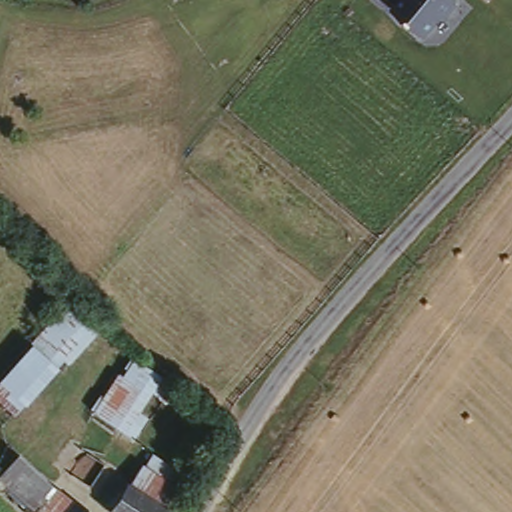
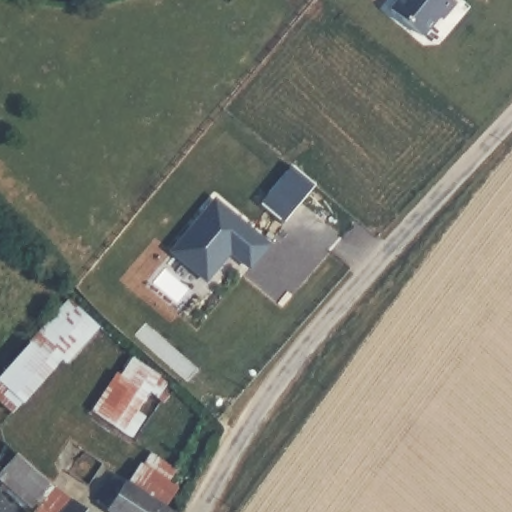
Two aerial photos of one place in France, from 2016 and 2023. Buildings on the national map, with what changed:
unchanged [(399,0),(454,0),(457,2),(426,39),(391,9),(399,0)]
new [(292,165),(312,182),(283,220),(263,200),(292,165)]
new [(271,246),(252,270),(232,255),(208,283),(172,251),(215,198),(271,246)]
unchanged [(9,417),(0,409),(0,381),(29,349),(27,347),(67,305),(91,327),(9,417)]
unchanged [(127,432),(120,428),(86,401),(114,367),(117,370),(131,353),(159,376),(129,416),(136,422),(127,432)]
unchanged [(141,458),(145,460),(151,449),(178,465),(171,477),(180,483),(167,501),(129,477),(141,458)]
unchanged [(56,485),(71,497),(57,512),(31,512),(22,505),(24,501),(0,479),(0,465),(14,450),(56,485)]
unchanged [(121,512),(100,497),(116,470),(129,477),(167,501),(182,511),(181,512),(121,512)]
unchanged [(89,512),(57,512),(71,497),(89,512)]

